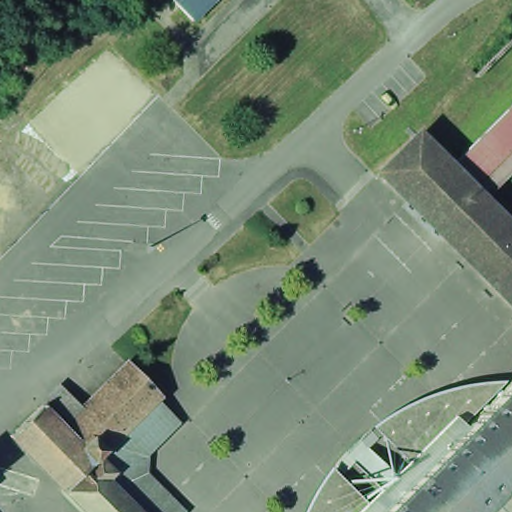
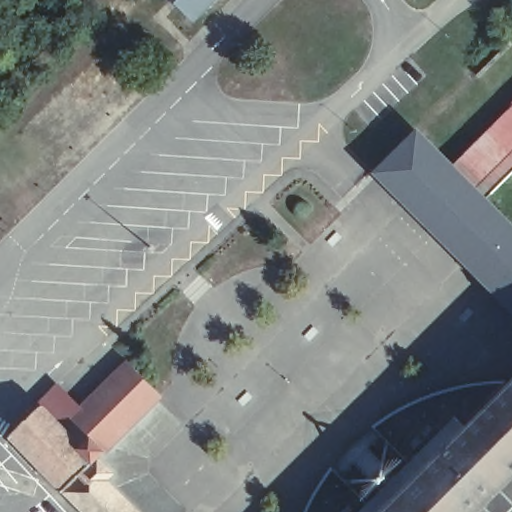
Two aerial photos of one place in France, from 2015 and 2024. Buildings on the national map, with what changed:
unchanged [(172,0),(218,0),(192,25),(172,0)]
unchanged [(466,152),(512,108),(512,178),(500,190),(466,152)]
unchanged [(422,129),(512,213),(512,314),(377,174),(422,129)]
unchanged [(182,512),(152,512),(103,463),(65,418),(54,405),(46,396),(60,378),(86,402),(127,359),(178,418),(144,456),(191,500),(182,512)]
unchanged [(390,416),(425,397),(446,387),(480,380),(493,414),(428,475),(376,425),(390,416)]
unchanged [(493,414),(512,396),(512,512),(389,512),(428,475),(493,414)]
unchanged [(54,405),(65,418),(103,463),(152,512),(91,512),(17,433),(54,405)]
unchanged [(334,463),(376,512),(306,512),(306,511),(334,463)]

